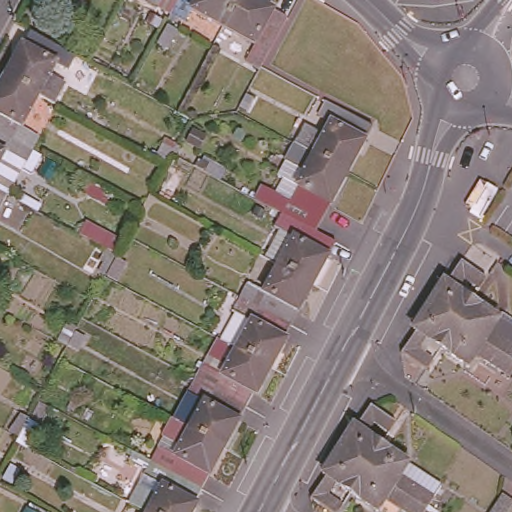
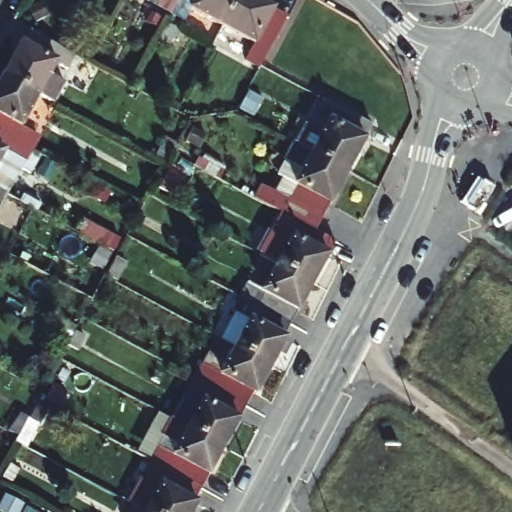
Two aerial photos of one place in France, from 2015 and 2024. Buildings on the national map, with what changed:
unchanged [(152,3),(148,0),(154,0),(152,3)]
unchanged [(182,17),(167,10),(173,0),(191,0),(182,17)]
unchanged [(233,32),(202,15),(196,25),(182,17),(191,0),(251,0),(233,32)]
unchanged [(270,72),(257,64),(265,49),(233,32),(251,0),(259,0),(297,21),(270,72)]
unchanged [(435,2),(432,0),(445,0),(435,2)]
unchanged [(77,45),(68,60),(57,53),(51,64),(67,73),(56,93),(40,85),(5,66),(30,20),(77,45)]
unchanged [(0,121),(0,76),(5,66),(40,85),(22,119),(20,118),(14,129),(0,121)]
unchanged [(290,157),(300,140),(317,149),(323,136),(313,131),(322,116),(367,141),(343,185),(290,157)]
unchanged [(14,129),(35,140),(27,154),(5,143),(0,152),(0,121),(14,129)]
unchanged [(177,142),(171,152),(165,162),(155,157),(166,136),(177,142)]
unchanged [(275,208),(285,213),(292,201),(290,199),(298,184),(280,175),(290,157),(343,185),(310,245),(277,227),(267,222),(275,208)]
unchanged [(8,184),(0,199),(0,180),(8,184)]
unchanged [(272,278),(287,252),(268,241),(277,227),(310,245),(330,256),(308,297),(272,278)]
unchanged [(105,274),(97,269),(102,261),(99,259),(105,248),(116,253),(112,260),(122,266),(115,279),(105,274)]
demolished [(452,293),(467,304),(452,327),(425,308),(439,284),(442,287),(457,265),(475,278),(468,289),(459,282),(452,293)]
unchanged [(235,311),(243,297),(258,305),(272,278),(308,297),(285,338),(235,311)]
demolished [(492,323),(487,332),(512,349),(512,363),(510,367),(452,327),(467,304),(492,323)]
demolished [(410,335),(408,333),(425,308),(452,327),(435,351),(422,341),(414,352),(423,359),(415,370),(397,357),(410,335)]
unchanged [(279,351),(282,353),(266,381),(230,361),(216,354),(230,327),(227,325),(235,311),(285,338),(279,351)]
unchanged [(77,327),(67,345),(57,340),(67,321),(77,327)]
demolished [(503,379),(470,359),(462,370),(435,351),(452,327),(510,367),(503,379)]
unchanged [(78,329),(87,333),(77,350),(69,346),(78,329)]
unchanged [(248,408),(241,421),(188,393),(197,378),(215,388),(222,378),(205,368),(213,352),(216,354),(230,361),(266,381),(250,409),(248,408)]
unchanged [(241,421),(219,462),(167,433),(175,418),(182,406),(188,393),(241,421)]
unchanged [(17,441),(40,400),(50,407),(28,447),(17,441)]
demolished [(391,422),(383,433),(375,427),(367,438),(382,448),(365,473),(337,454),(354,427),(357,430),(372,408),(391,422)]
unchanged [(27,417),(17,435),(9,431),(19,413),(27,417)]
unchanged [(167,433),(219,462),(197,503),(160,483),(145,475),(152,462),(158,450),(157,449),(167,433)]
demolished [(382,448),(408,467),(402,477),(433,499),(426,512),(424,512),(365,473),(382,448)]
demolished [(326,512),(310,502),(325,480),(322,478),(337,454),(365,473),(350,497),(335,487),(327,498),(337,505),(332,512),(326,512)]
unchanged [(10,464),(20,468),(13,481),(3,476),(10,464)]
demolished [(380,512),(371,512),(350,497),(365,473),(424,512),(398,512),(385,504),(380,512)]
unchanged [(197,503),(192,512),(125,512),(132,500),(137,489),(145,475),(160,483),(197,503)]
demolished [(488,512),(501,492),(512,499),(512,503),(506,512),(488,512)]
new [(5,496),(36,512),(4,512),(0,510),(0,505),(5,496)]

